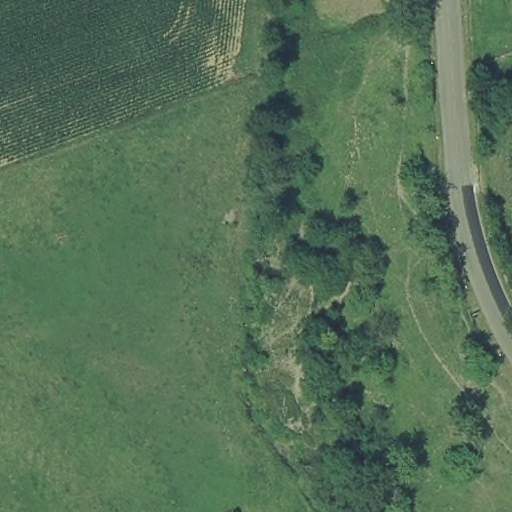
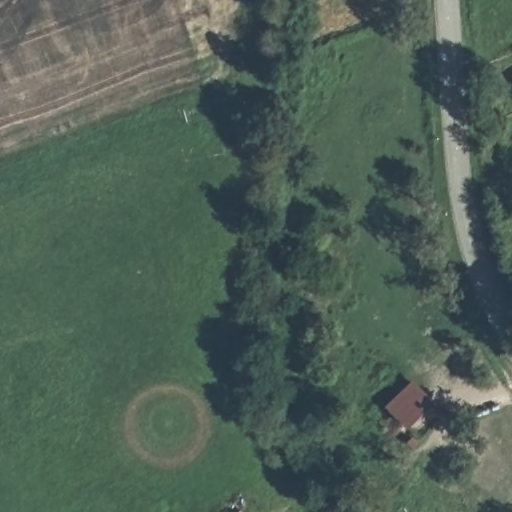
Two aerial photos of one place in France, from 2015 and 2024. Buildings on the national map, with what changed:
unchanged [(509,75),(512,73),(512,81),(509,75)]
new [(434,401),(403,427),(383,407),(413,380),(434,401)]

